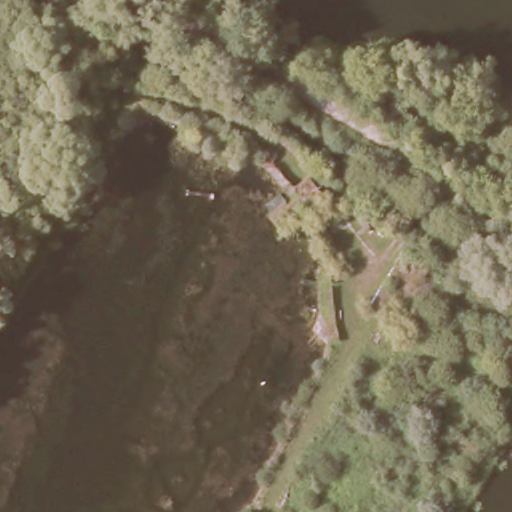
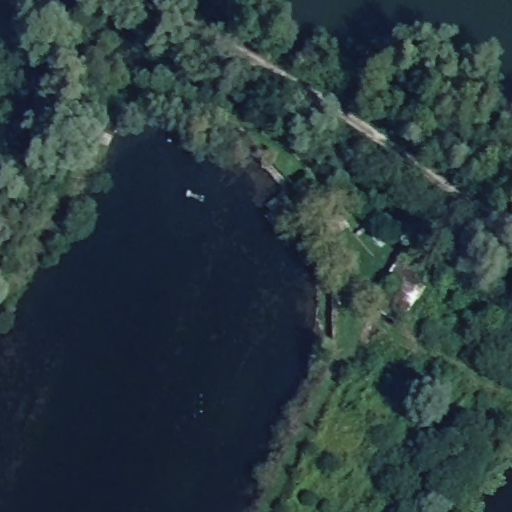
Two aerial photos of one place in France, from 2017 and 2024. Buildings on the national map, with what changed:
unchanged [(284,181),(280,190),(273,185),(270,192),(262,187),(266,181),(261,178),(267,170),(284,181)]

